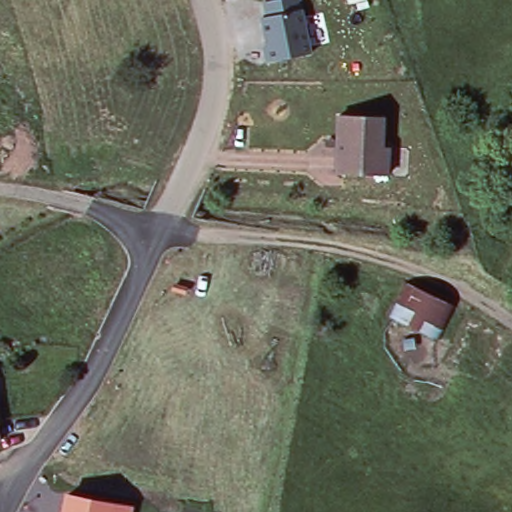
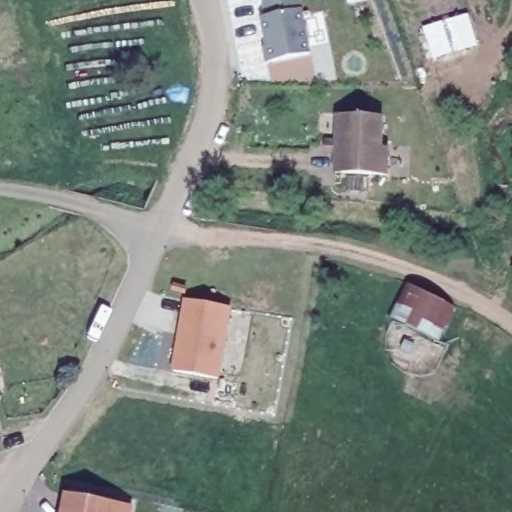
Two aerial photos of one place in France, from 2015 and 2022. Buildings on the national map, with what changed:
unchanged [(309,55),(266,63),(263,46),(268,46),(261,4),(282,0),(299,0),(309,55)]
unchanged [(341,158),(334,157),(336,119),(381,120),(380,150),(387,151),(386,177),(341,176),(341,158)]
unchanged [(449,304),(435,340),(391,319),(412,287),(449,304)]
new [(231,307),(219,378),(172,370),(184,301),(231,307)]
demolished [(174,355),(180,357),(178,362),(173,360),(174,355)]
unchanged [(0,442),(0,433),(2,441),(0,442)]
unchanged [(132,512),(62,512),(65,493),(133,507),(132,512)]

